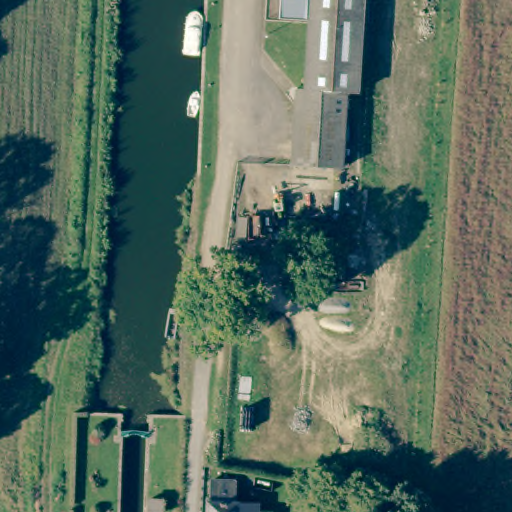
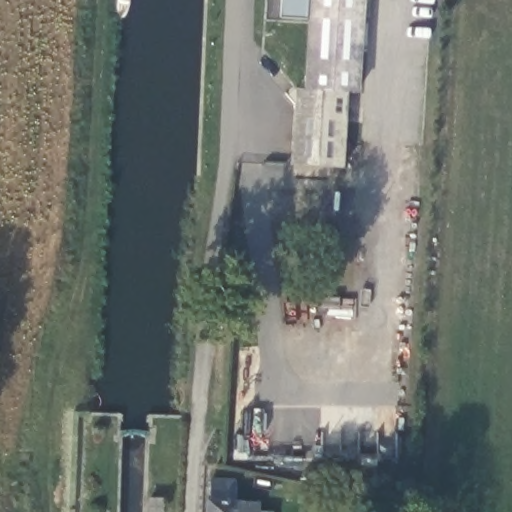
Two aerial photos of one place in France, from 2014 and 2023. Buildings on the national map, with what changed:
unchanged [(347,90),(344,166),(293,165),(296,87),(304,87),(307,0),(357,0),(354,90),(347,90)]
unchanged [(242,483),(240,497),(246,505),(260,506),(259,512),(211,512),(214,481),(242,483)]

